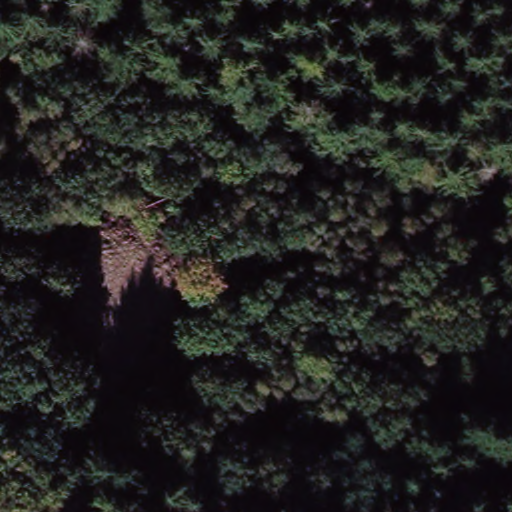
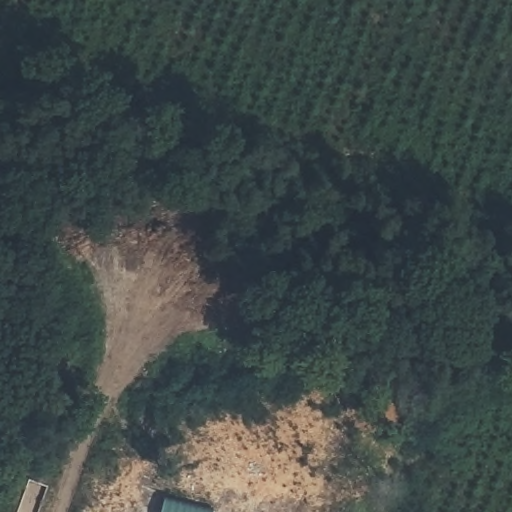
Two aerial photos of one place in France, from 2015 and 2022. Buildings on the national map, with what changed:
new [(215,511),(214,512),(161,512),(164,499),(215,511)]

